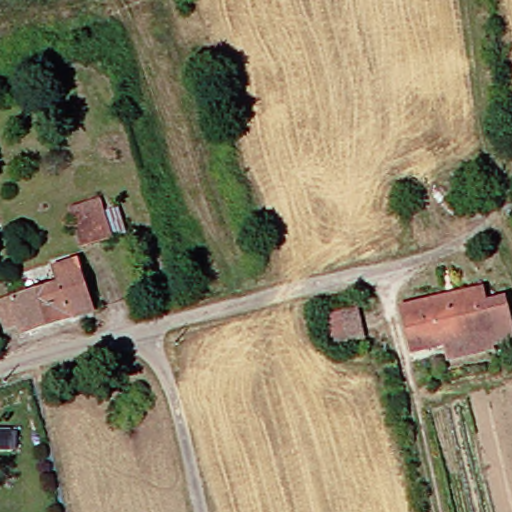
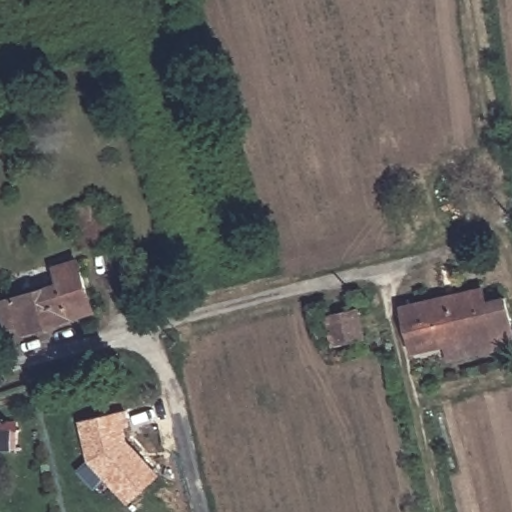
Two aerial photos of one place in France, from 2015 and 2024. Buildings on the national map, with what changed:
unchanged [(111,213),(117,236),(74,249),(64,213),(93,205),(96,216),(111,213)]
unchanged [(0,328),(0,306),(57,290),(52,270),(74,264),(87,312),(27,330),(13,334),(10,325),(0,328)]
unchanged [(436,352),(406,358),(397,313),(478,296),(481,306),(503,302),(508,330),(511,345),(487,351),(438,362),(436,352)]
unchanged [(360,344),(325,351),(316,318),(352,309),(360,344)]
new [(129,504),(105,477),(96,486),(79,468),(88,459),(79,420),(128,408),(132,425),(126,427),(128,439),(162,473),(129,504)]
new [(16,452),(0,452),(0,423),(15,423),(16,452)]

